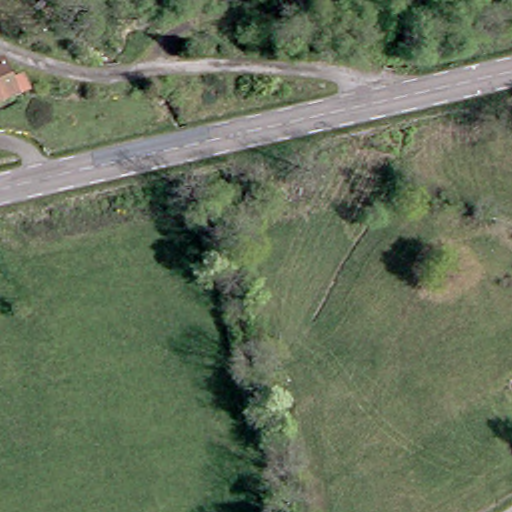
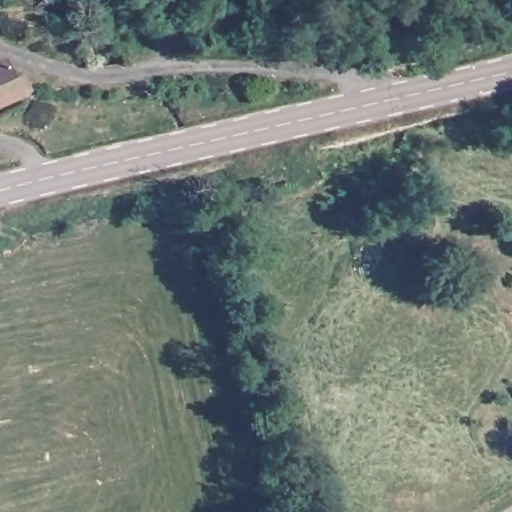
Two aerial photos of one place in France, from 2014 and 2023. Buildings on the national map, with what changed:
unchanged [(20,91),(33,86),(39,84),(45,100),(0,117),(0,78),(14,72),(20,91)]

